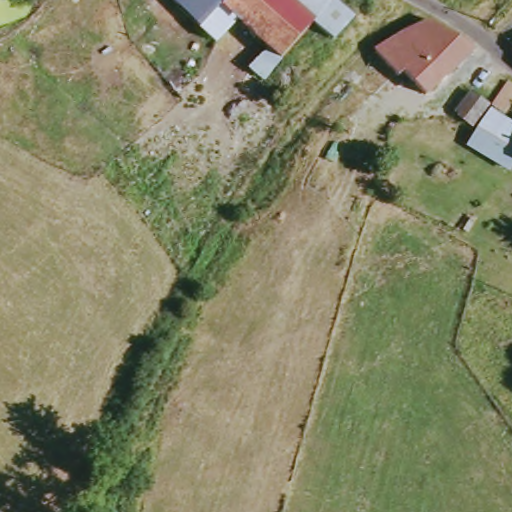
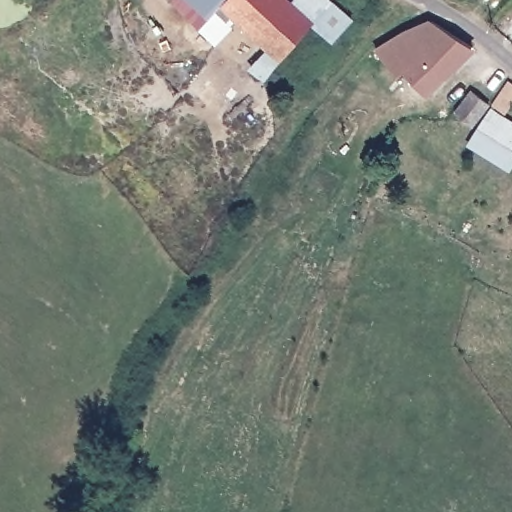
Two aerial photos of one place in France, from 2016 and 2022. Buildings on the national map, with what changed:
unchanged [(275,53),(232,16),(214,34),(178,0),(289,0),(308,18),(275,53)]
unchanged [(323,31),(308,18),(289,0),(326,0),(340,13),(323,31)]
unchanged [(467,44),(423,89),(401,68),(393,73),(372,45),(397,28),(425,17),(467,44)]
unchanged [(512,98),(510,99),(496,90),(508,74),(512,78),(512,98)]
unchanged [(473,121),(455,106),(471,86),(489,100),(473,121)]
unchanged [(465,144),(491,108),(512,118),(512,164),(508,169),(465,144)]

